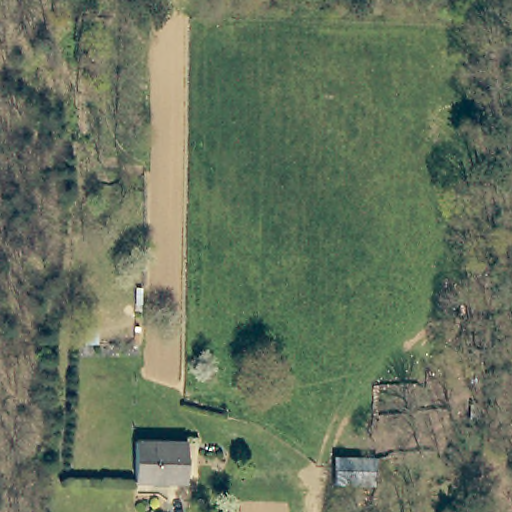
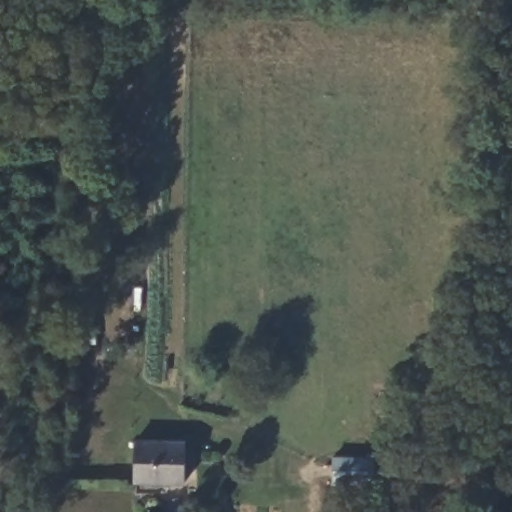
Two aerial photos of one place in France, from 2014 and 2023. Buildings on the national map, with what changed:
unchanged [(190,443),(188,483),(136,480),(138,440),(190,443)]
unchanged [(340,485),(340,461),(379,462),(378,486),(340,485)]

